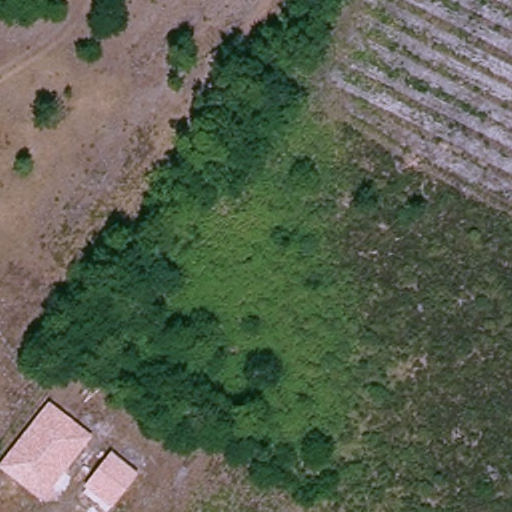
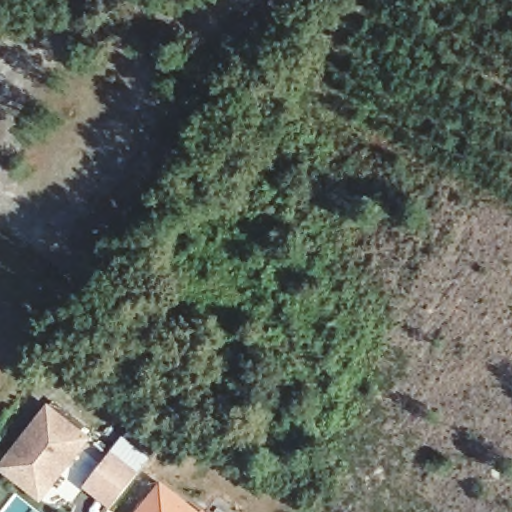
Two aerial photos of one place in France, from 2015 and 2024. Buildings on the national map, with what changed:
unchanged [(41,501),(0,469),(0,468),(47,402),(91,437),(41,501)]
unchanged [(138,474),(111,507),(85,485),(110,452),(138,474)]
new [(161,481),(201,512),(136,512),(161,481)]

